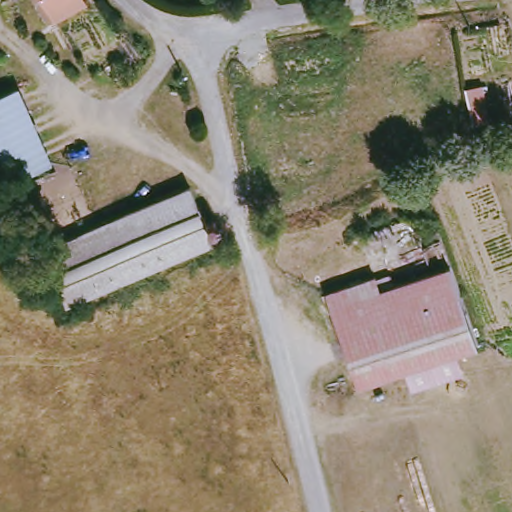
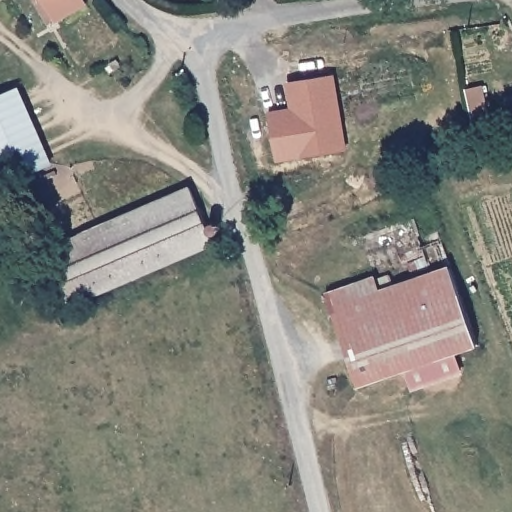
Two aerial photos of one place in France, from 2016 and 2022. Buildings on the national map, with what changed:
unchanged [(82,0),(85,4),(57,21),(48,25),(35,0),(82,0)]
new [(325,154),(275,161),(269,115),(287,113),(287,118),(295,116),(290,83),(335,77),(343,136),(345,151),(325,154)]
unchanged [(2,185),(0,181),(0,96),(17,89),(50,165),(2,185)]
unchanged [(26,182),(38,215),(27,219),(15,187),(26,182)]
unchanged [(155,203),(190,188),(213,244),(66,307),(42,252),(101,226),(109,223),(155,203)]
unchanged [(326,295),(375,277),(380,292),(451,268),(478,345),(358,387),(326,295)]

